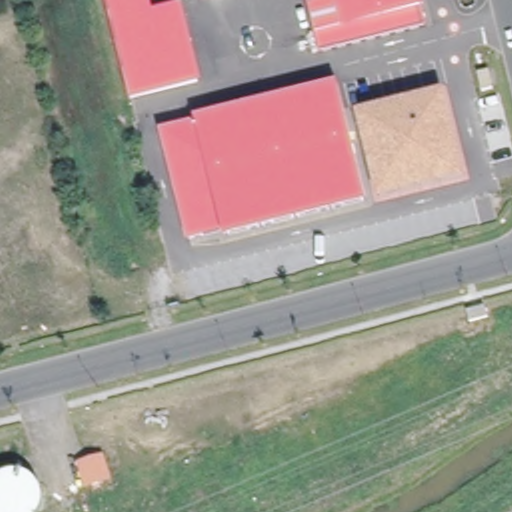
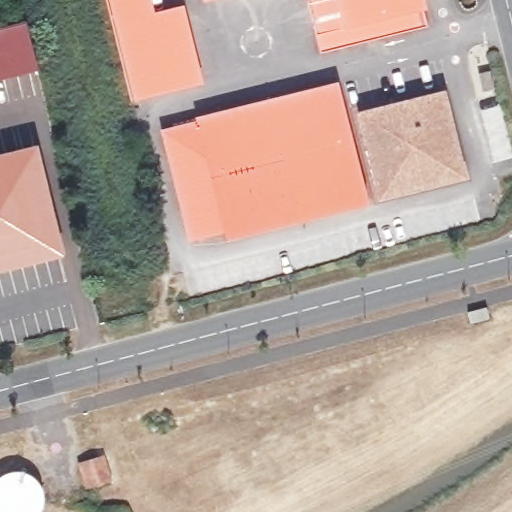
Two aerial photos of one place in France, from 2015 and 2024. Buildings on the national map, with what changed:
unchanged [(183,5),(201,84),(131,99),(107,0),(150,0),(153,11),(183,5)]
unchanged [(204,0),(206,0),(204,1),(204,0)]
unchanged [(428,25),(320,51),(308,0),(422,0),(423,3),(428,25)]
new [(0,77),(0,24),(23,18),(37,68),(0,77)]
unchanged [(199,121),(337,85),(368,202),(227,235),(225,228),(190,237),(163,131),(199,121)]
unchanged [(440,93),(462,175),(380,196),(361,112),(440,93)]
new [(0,269),(0,151),(36,143),(63,254),(0,269)]

